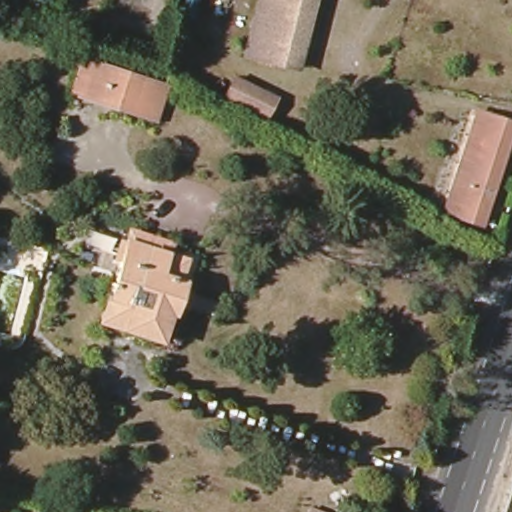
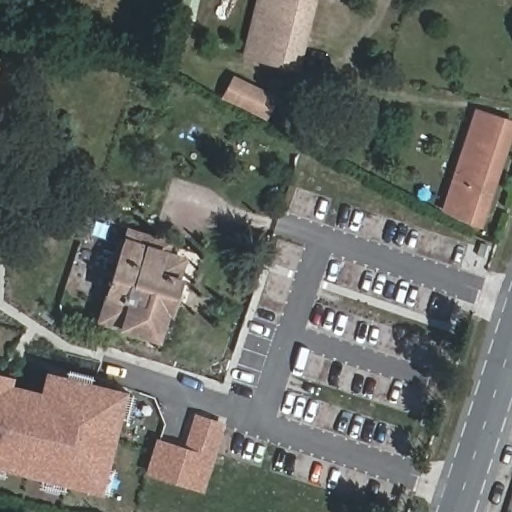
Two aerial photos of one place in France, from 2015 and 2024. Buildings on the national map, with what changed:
unchanged [(197,3),(188,36),(167,32),(171,0),(175,0),(197,3)]
unchanged [(297,72),(247,59),(262,0),(315,0),(297,72)]
demolished [(166,89),(155,122),(72,95),(82,62),(166,89)]
unchanged [(277,102),(267,120),(225,98),(235,79),(277,102)]
unchanged [(482,229),(458,221),(444,213),(477,113),(512,125),(512,137),(482,229)]
unchanged [(177,282),(181,283),(170,315),(167,314),(161,334),(129,323),(126,331),(100,323),(130,233),(152,240),(169,246),(165,256),(184,263),(177,282)]
new [(9,374),(20,377),(19,381),(34,385),(53,390),(59,369),(135,389),(110,485),(0,458),(0,377),(8,379),(9,374)]
new [(203,487),(152,470),(162,440),(189,448),(200,415),(224,423),(215,449),(213,456),(203,487)]
demolished [(332,512),(308,512),(310,505),(332,512)]

